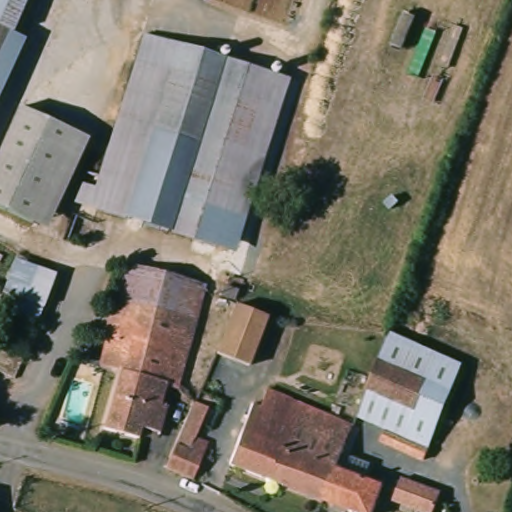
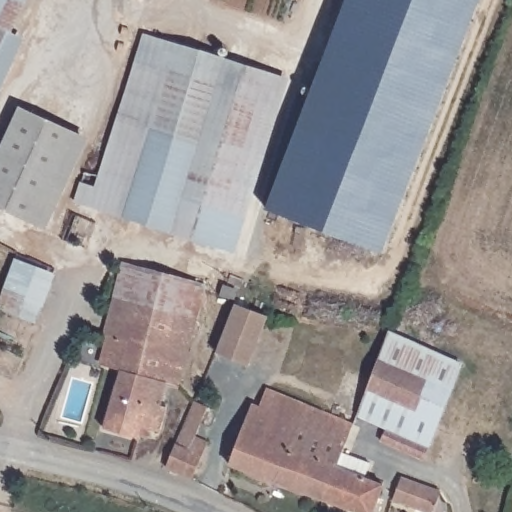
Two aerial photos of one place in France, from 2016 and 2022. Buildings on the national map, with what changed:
unchanged [(0,18),(0,0),(8,0),(0,18)]
new [(382,253),(266,209),(346,0),(480,0),(382,253)]
unchanged [(0,55),(0,19),(13,26),(0,55)]
unchanged [(285,75),(230,247),(123,214),(132,183),(115,177),(160,36),(285,75)]
unchanged [(47,228),(0,208),(0,144),(15,110),(85,137),(47,228)]
unchanged [(90,203),(101,172),(115,177),(132,183),(123,214),(90,203)]
unchanged [(65,266),(40,332),(0,311),(0,300),(20,247),(65,266)]
unchanged [(128,268),(210,296),(200,327),(118,300),(128,268)]
unchanged [(181,387),(170,384),(156,431),(144,427),(141,435),(134,433),(133,437),(104,427),(126,342),(107,334),(118,300),(200,327),(181,387)]
unchanged [(267,327),(250,372),(221,361),(237,316),(267,327)]
unchanged [(392,333),(467,365),(435,447),(412,437),(422,411),(369,388),(392,333)]
unchanged [(384,440),(388,430),(358,416),(369,388),(422,411),(412,437),(435,447),(429,461),(384,440)]
unchanged [(254,405),(267,410),(273,394),(311,411),(295,455),(336,475),(335,476),(322,508),(231,467),(254,405)]
unchanged [(207,407),(196,436),(207,442),(195,476),(169,466),(194,400),(207,407)]
unchanged [(295,455),(311,411),(344,425),(354,430),(336,475),(295,455)]
unchanged [(377,512),(329,512),(322,508),(335,476),(336,475),(383,497),(377,512)]
unchanged [(410,512),(396,506),(405,484),(443,501),(439,512),(410,512)]

